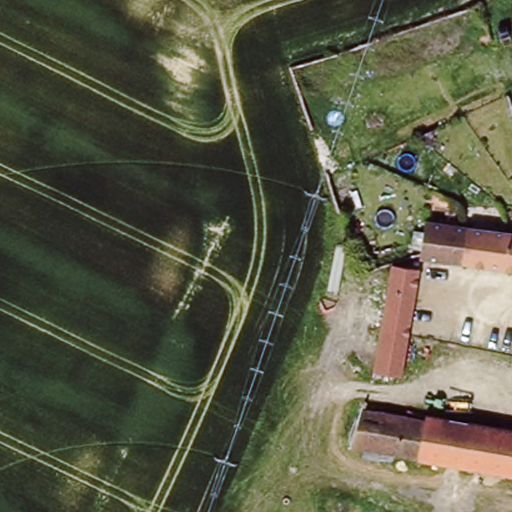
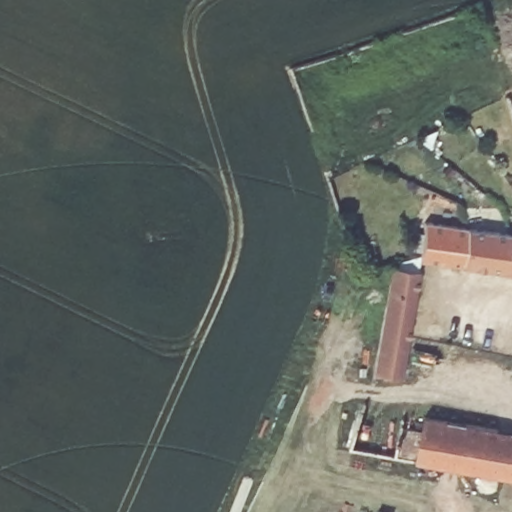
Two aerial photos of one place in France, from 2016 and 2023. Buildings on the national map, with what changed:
unchanged [(433,222),(474,227),(470,263),(430,260),(433,222)]
unchanged [(512,231),(512,268),(470,263),(474,227),(512,231)]
unchanged [(397,267),(409,270),(412,258),(423,259),(420,273),(425,274),(410,328),(382,322),(397,267)]
unchanged [(410,328),(397,378),(370,371),(382,322),(410,328)]
unchanged [(415,458),(353,449),(360,410),(423,420),(415,458)]
unchanged [(423,420),(424,413),(512,427),(512,473),(415,458),(423,420)]

